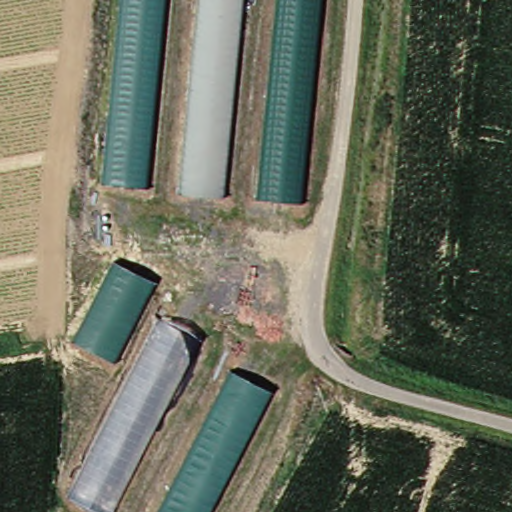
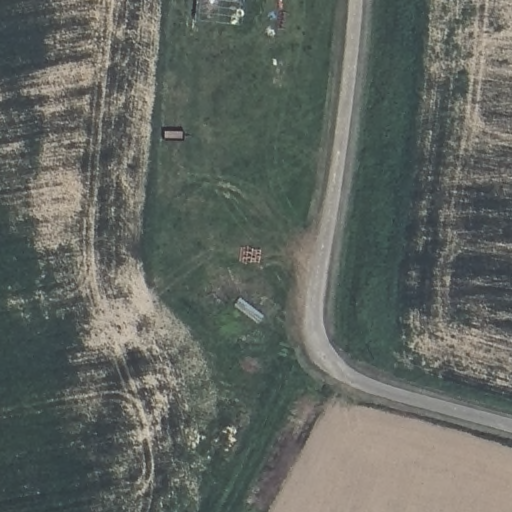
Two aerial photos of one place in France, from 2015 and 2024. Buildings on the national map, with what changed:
demolished [(120,0),(167,0),(149,189),(102,182),(120,0)]
unchanged [(227,193),(181,190),(199,0),(246,0),(227,193)]
demolished [(300,199),(259,197),(279,0),(320,0),(300,199)]
demolished [(157,282),(116,363),(71,341),(111,260),(157,282)]
demolished [(203,336),(115,512),(99,512),(66,500),(160,315),(203,336)]
demolished [(209,512),(158,512),(228,371),(270,390),(209,512)]

